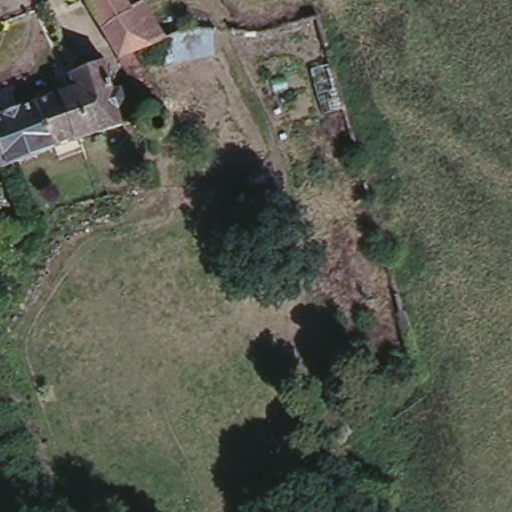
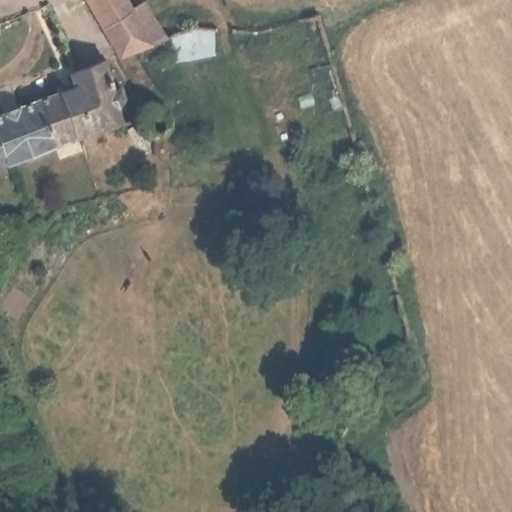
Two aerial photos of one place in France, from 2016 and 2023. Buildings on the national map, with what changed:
unchanged [(134,0),(145,0),(163,32),(116,59),(82,0),(127,0),(129,4),(134,0)]
unchanged [(70,69),(104,57),(122,122),(0,166),(0,107),(71,81),(70,69)]
unchanged [(332,61),(353,130),(326,137),(309,69),(332,61)]

